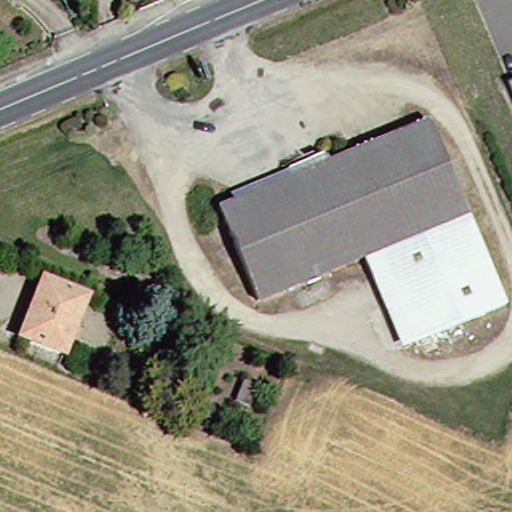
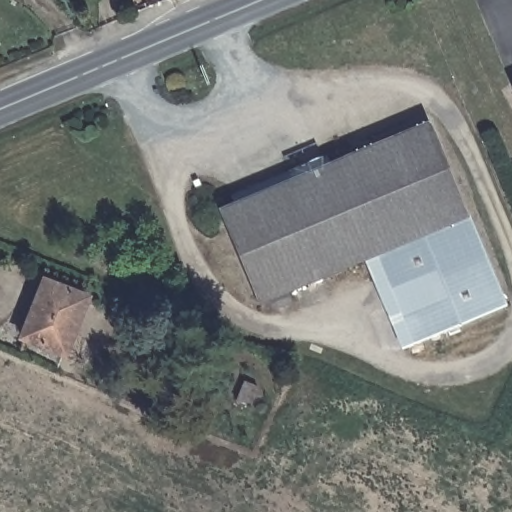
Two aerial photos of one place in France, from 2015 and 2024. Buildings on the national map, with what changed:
unchanged [(512,84),(512,87),(511,85),(512,84)]
unchanged [(418,119),(495,304),(403,343),(366,253),(247,302),(207,207),(418,119)]
unchanged [(73,296),(50,355),(8,339),(20,309),(16,308),(28,278),(73,296)]
unchanged [(257,386),(249,405),(236,400),(244,381),(257,386)]

